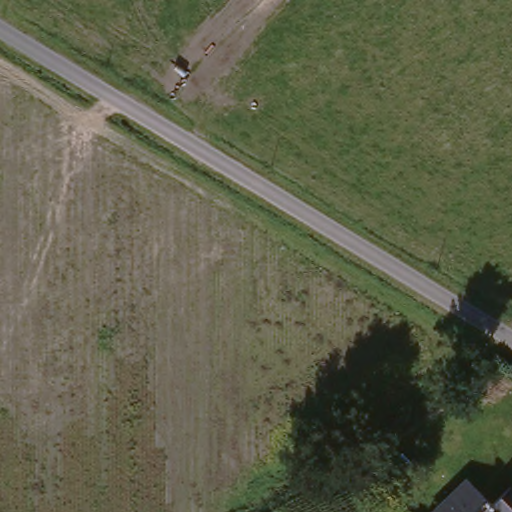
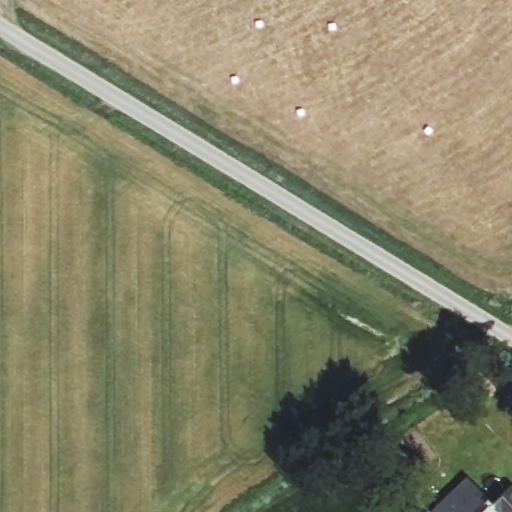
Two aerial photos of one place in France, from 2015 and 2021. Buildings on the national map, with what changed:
unchanged [(488,508),(509,491),(512,495),(512,512),(434,512),(467,483),(488,508)]

